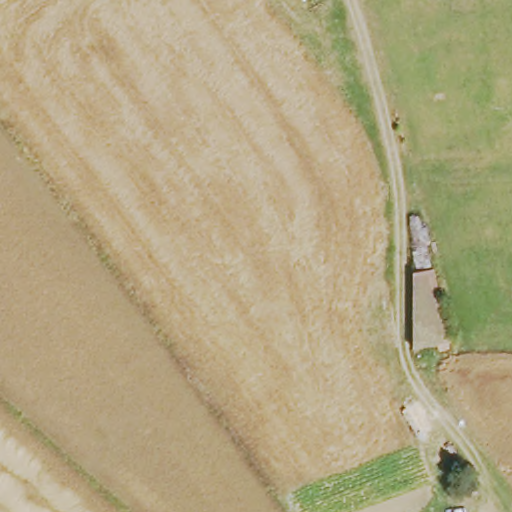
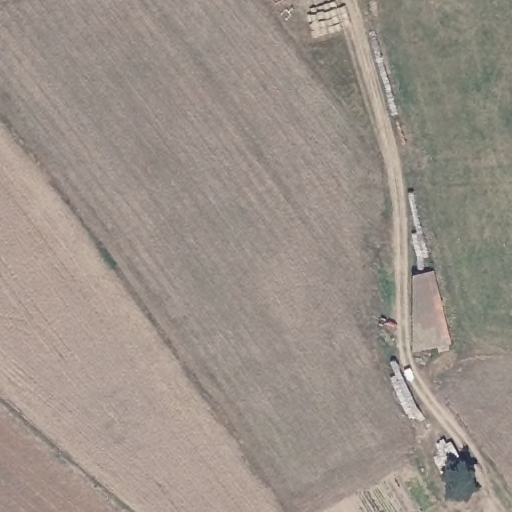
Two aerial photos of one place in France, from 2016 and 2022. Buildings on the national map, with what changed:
unchanged [(405,277),(430,270),(445,344),(408,352),(405,277)]

